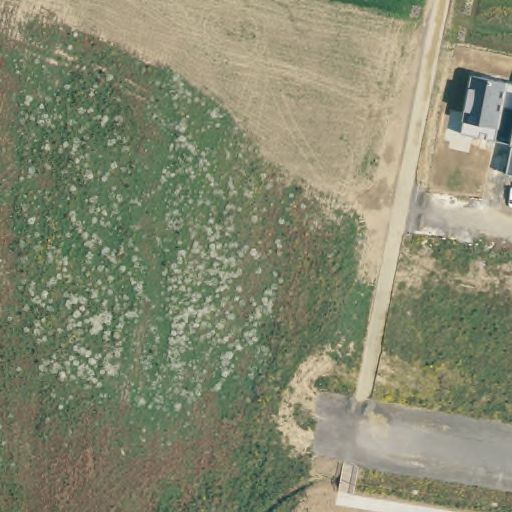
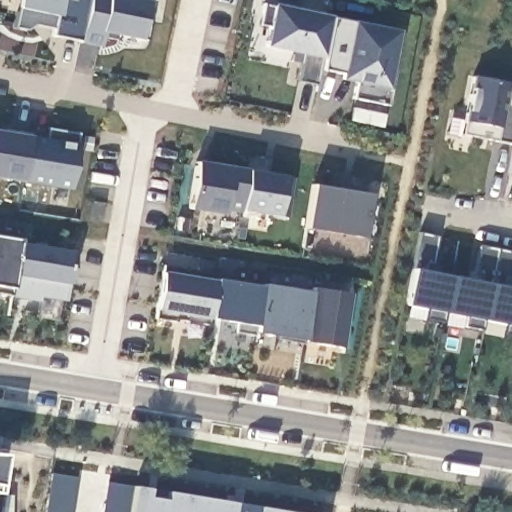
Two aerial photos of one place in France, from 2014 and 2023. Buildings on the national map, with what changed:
new [(104,32),(102,46),(79,41),(51,36),(52,29),(33,25),(24,31),(14,28),(19,7),(14,6),(16,0),(149,0),(141,40),(104,32)]
new [(264,4),(331,18),(317,86),(298,82),(304,54),(266,46),(270,27),(260,25),(264,4)]
new [(350,22),(398,32),(386,89),(391,90),(388,106),(352,99),(355,83),(338,80),(339,74),(321,69),(333,18),(350,22)]
new [(304,54),(302,64),(291,62),(293,51),(304,54)]
unchanged [(506,174),(509,144),(463,136),(464,120),(473,79),(512,86),(512,176),(506,174)]
new [(46,138),(48,129),(79,134),(78,144),(71,190),(23,182),(0,179),(0,131),(30,136),(46,138)]
new [(243,168),(283,175),(294,177),(287,218),(275,217),(270,214),(241,211),(224,208),(223,214),(187,208),(195,161),(243,168)]
new [(368,195),(362,238),(305,229),(312,185),(368,195)]
new [(419,233),(436,237),(429,273),(476,282),(482,246),(512,253),(512,276),(509,287),(512,287),(512,325),(406,304),(412,269),(419,233)]
new [(74,248),(69,283),(64,299),(39,295),(38,302),(9,299),(9,295),(0,294),(0,237),(20,240),(74,248)]
new [(163,265),(218,273),(215,280),(209,317),(209,324),(154,317),(156,310),(162,272),(163,265)]
new [(209,319),(216,279),(262,287),(254,336),(234,333),(236,323),(209,319)]
new [(312,293),(313,288),(349,294),(342,348),(302,342),(254,333),(263,285),(312,293)]

